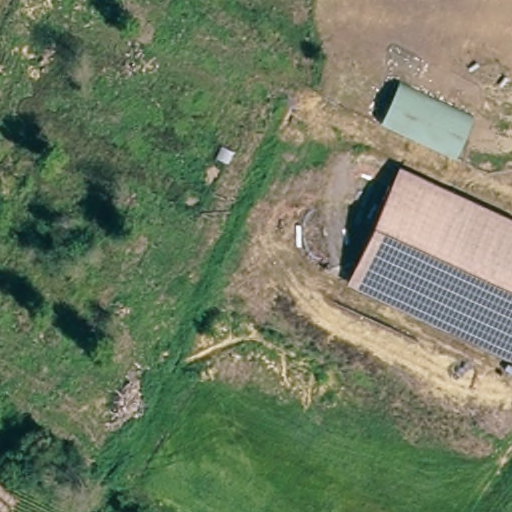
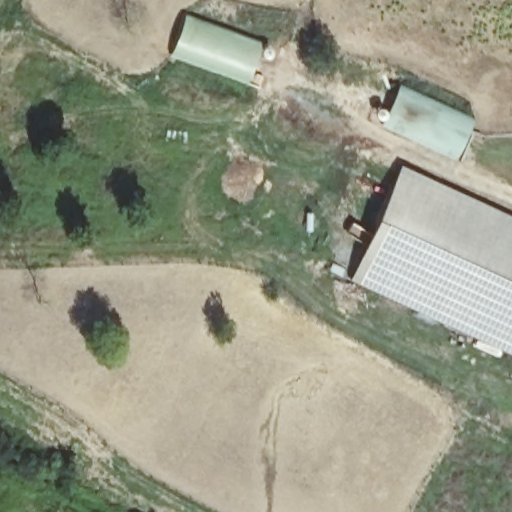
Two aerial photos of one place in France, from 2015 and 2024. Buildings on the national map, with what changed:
new [(248,80),(169,53),(183,16),(261,44),(248,80)]
unchanged [(402,83),(473,116),(456,157),(383,123),(402,83)]
unchanged [(512,217),(512,351),(510,354),(349,279),(401,166),(512,217)]

